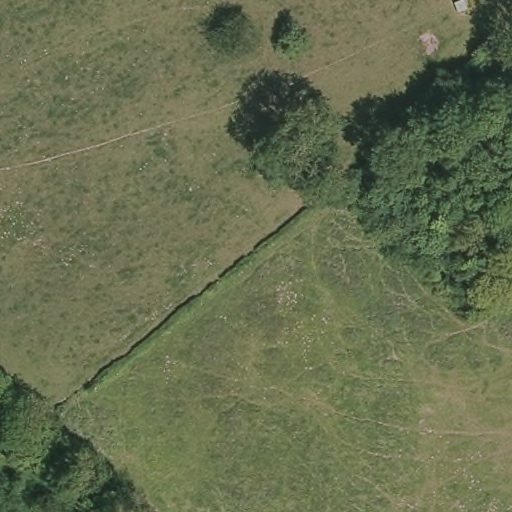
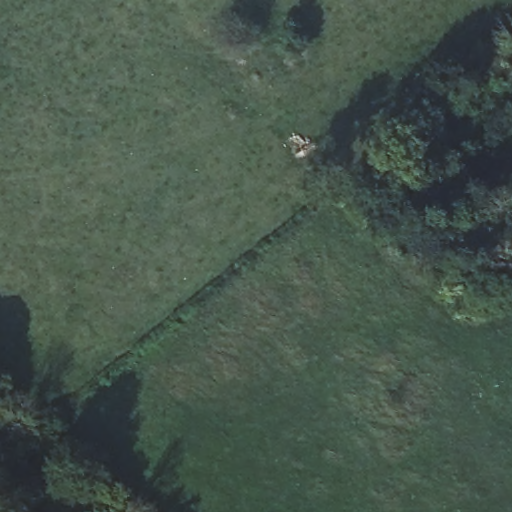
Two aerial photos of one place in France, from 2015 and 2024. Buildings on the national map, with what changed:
[]

